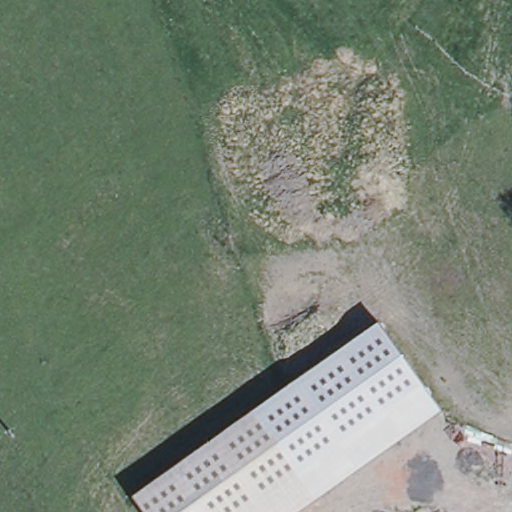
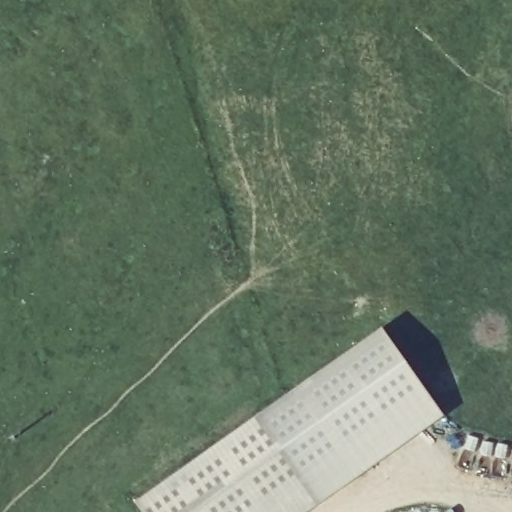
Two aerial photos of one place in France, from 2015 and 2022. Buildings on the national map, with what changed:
unchanged [(314,512),(138,512),(131,503),(258,413),(323,506),(314,512)]

